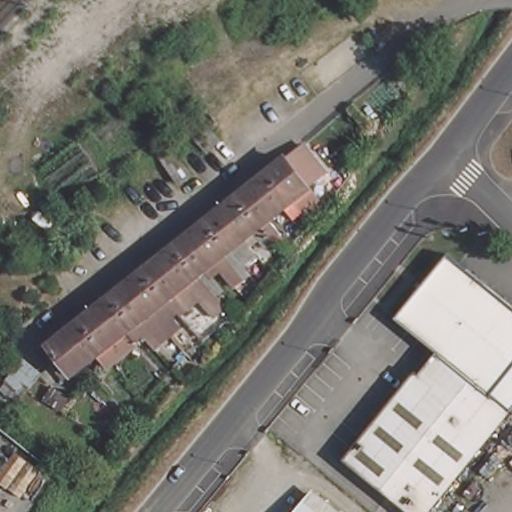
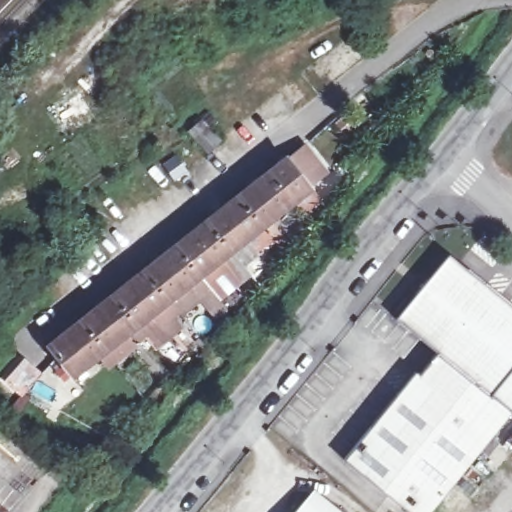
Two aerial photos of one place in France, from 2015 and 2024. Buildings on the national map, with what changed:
unchanged [(279,163),(281,166),(299,152),(321,179),(294,202),(303,212),(288,224),(279,213),(260,229),(268,240),(254,251),(246,240),(225,257),(234,267),(220,278),(212,268),(191,284),(199,295),(186,306),(177,295),(157,310),(166,321),(153,332),(144,321),(123,338),(132,349),(118,359),(110,349),(89,366),(98,376),(83,388),(75,377),(66,384),(57,373),(49,379),(35,361),(43,355),(42,354),(279,163)]
unchanged [(142,242),(137,236),(145,229),(150,236),(142,242)]
unchanged [(428,512),(410,512),(343,459),(414,369),(418,373),(436,350),(394,317),(444,252),(512,305),(512,405),(428,512)]
unchanged [(328,512),(295,512),(308,496),(328,512)]

